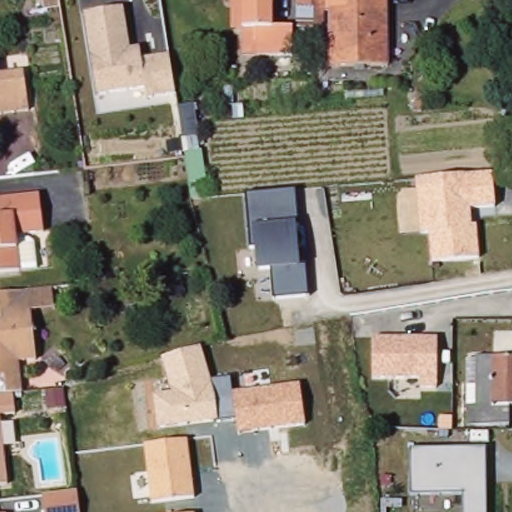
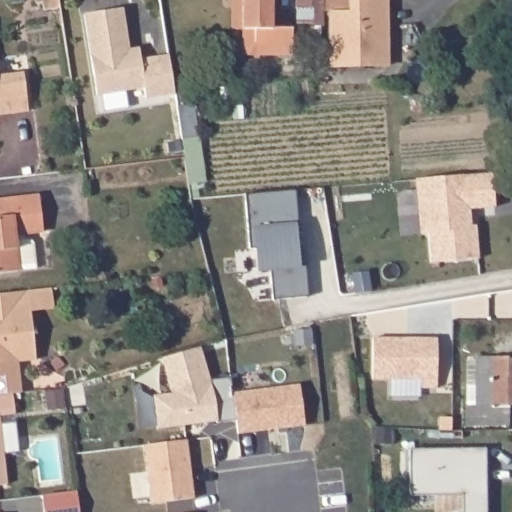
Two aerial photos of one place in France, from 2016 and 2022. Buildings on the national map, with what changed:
unchanged [(59,0),(60,7),(45,10),(43,3),(36,4),(35,0),(59,0)]
unchanged [(297,55),(248,54),(248,33),(238,33),(238,0),(278,0),(278,28),(298,28),(297,55)]
unchanged [(302,9),(302,0),(316,0),(317,9),(302,9)]
unchanged [(318,0),(328,0),(329,13),(329,25),(319,25),(319,13),(318,0)]
unchanged [(335,0),(392,0),(393,67),(336,68),(335,13),(335,0)]
unchanged [(125,8),(130,48),(143,46),(144,55),(170,53),(175,96),(146,99),(144,93),(96,98),(84,14),(125,8)]
unchanged [(0,78),(29,74),(35,111),(5,115),(4,108),(0,108),(0,78)]
unchanged [(197,101),(205,189),(188,190),(184,156),(170,155),(169,144),(181,141),(177,105),(197,101)]
unchanged [(432,265),(428,233),(421,233),(416,181),(494,175),(497,204),(470,206),(472,228),(478,228),(480,259),(432,265)]
unchanged [(271,272),(257,273),(256,253),(251,252),(247,197),(296,193),(298,224),(301,269),(306,268),(308,297),(273,300),(271,272)]
unchanged [(45,196),(49,232),(30,234),(31,239),(34,239),(39,243),(42,269),(0,274),(0,201),(45,196)]
unchanged [(13,293),(27,291),(33,290),(35,305),(41,359),(24,361),(27,392),(17,393),(20,413),(4,414),(12,483),(0,484),(0,294),(13,293)]
unchanged [(439,338),(439,386),(423,387),(423,379),(374,376),(372,333),(439,338)]
unchanged [(155,397),(174,394),(161,358),(200,347),(211,383),(231,379),(233,393),(301,386),(306,426),(238,433),(236,419),(219,421),(158,427),(155,397)]
unchanged [(483,385),(484,356),(512,357),(512,426),(473,426),(474,385),(483,385)]
unchanged [(144,446),(188,442),(194,498),(150,504),(144,446)]
unchanged [(462,494),(411,494),(411,452),(484,451),(484,512),(462,512),(462,494)]
unchanged [(78,491),(80,512),(45,512),(43,495),(78,491)]

